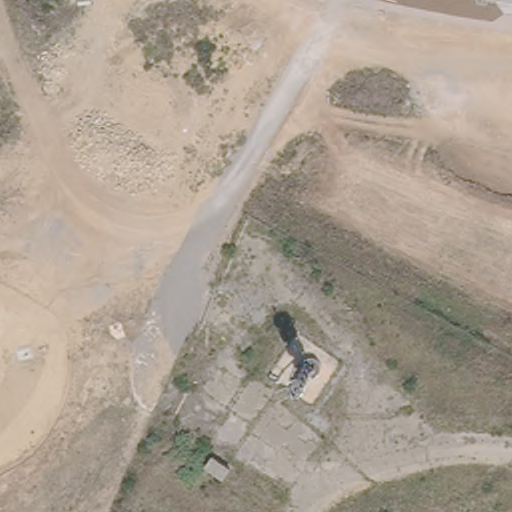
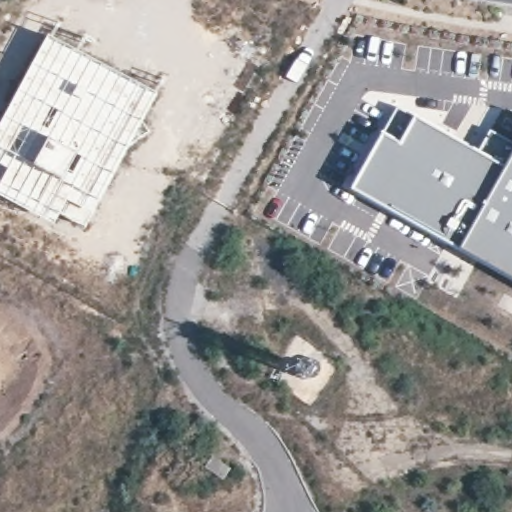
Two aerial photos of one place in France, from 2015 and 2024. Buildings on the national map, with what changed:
new [(157,95),(85,227),(62,213),(56,225),(0,197),(0,186),(2,182),(0,181),(0,126),(48,37),(157,95)]
new [(477,150),(489,129),(512,141),(512,277),(461,248),(351,187),(383,133),(398,107),(415,116),(477,150)]

